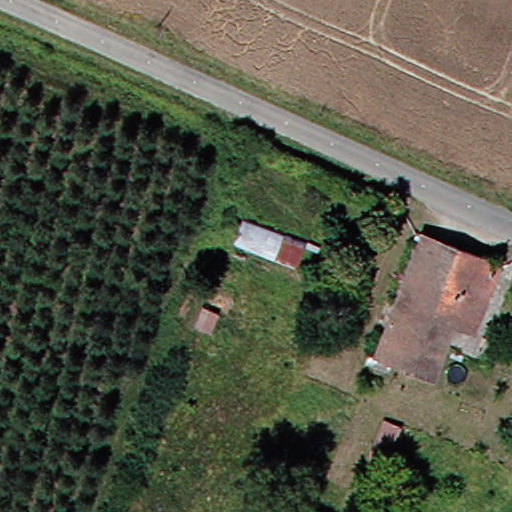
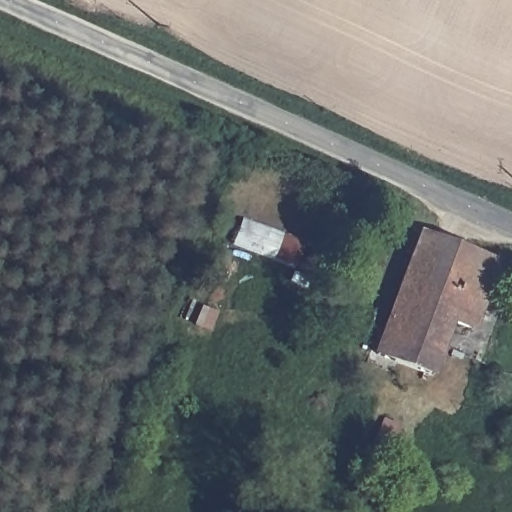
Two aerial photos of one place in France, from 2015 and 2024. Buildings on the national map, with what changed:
unchanged [(309,239),(297,264),(238,241),(247,215),(309,239)]
unchanged [(381,348),(428,228),(508,259),(486,318),(460,309),(436,370),(381,348)]
unchanged [(386,427),(403,434),(390,469),(372,462),(386,427)]

